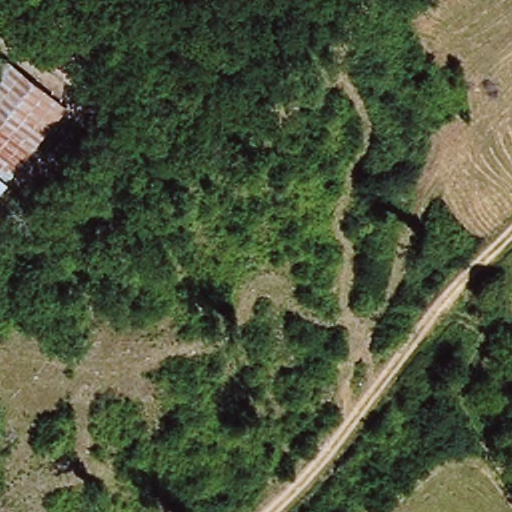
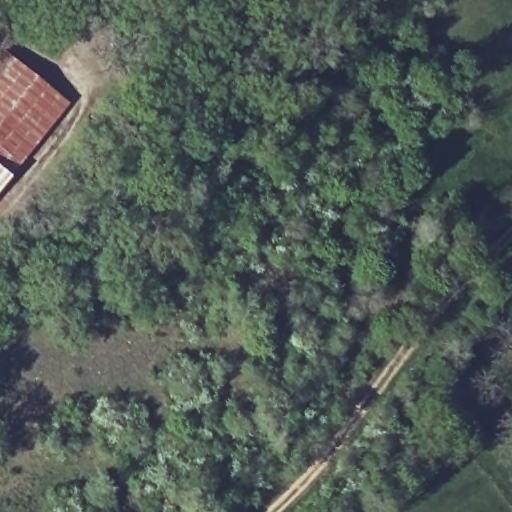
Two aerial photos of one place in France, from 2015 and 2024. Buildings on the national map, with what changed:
unchanged [(0,35),(64,74),(49,102),(0,191),(0,35)]

